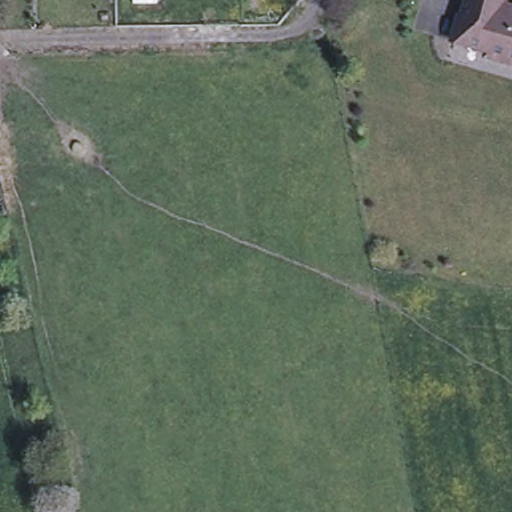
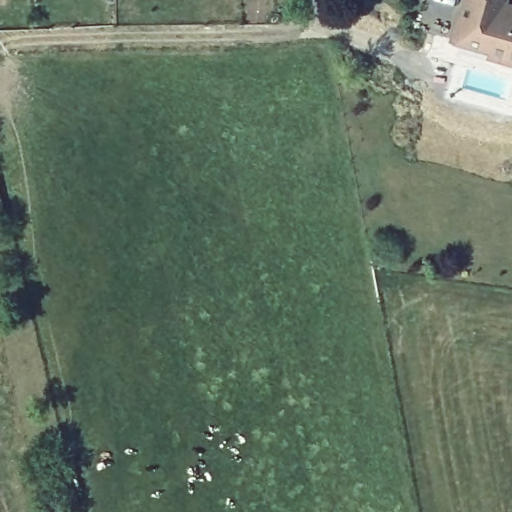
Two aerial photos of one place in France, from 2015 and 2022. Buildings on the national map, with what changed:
unchanged [(462,0),(501,0),(500,6),(512,9),(512,65),(490,59),(486,52),(447,41),(455,17),(457,17),(462,0)]

